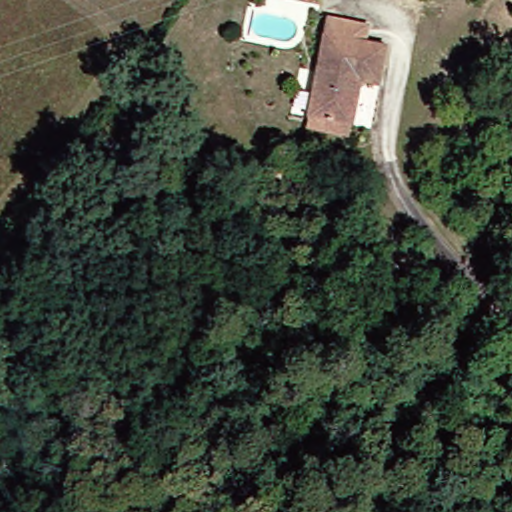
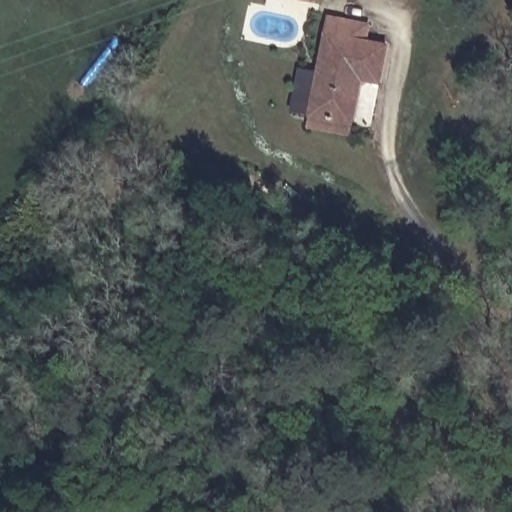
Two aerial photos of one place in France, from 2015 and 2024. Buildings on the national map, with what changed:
unchanged [(375,24),(372,44),(390,46),(385,83),(364,80),(355,135),(309,126),(330,15),(375,24)]

